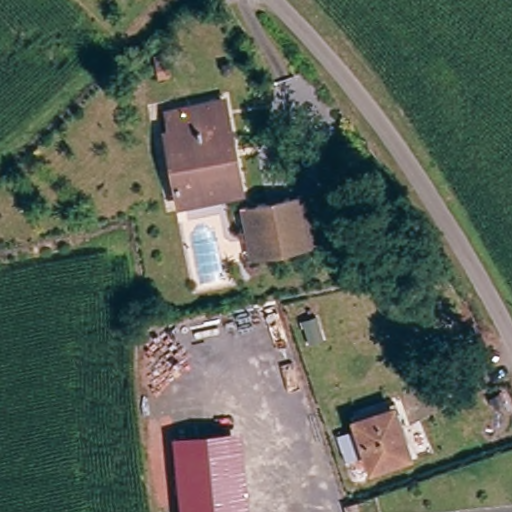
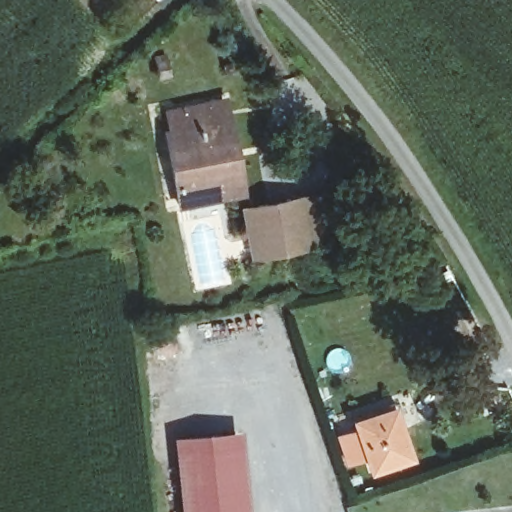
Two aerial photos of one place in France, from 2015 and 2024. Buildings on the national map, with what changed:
unchanged [(166,125),(174,122),(171,106),(223,94),(239,191),(179,206),(166,125)]
unchanged [(317,190),(326,238),(312,240),(250,250),(242,205),(305,193),(317,190)]
unchanged [(387,413),(402,453),(366,468),(351,426),(387,413)]
unchanged [(181,512),(171,438),(230,431),(241,512),(181,512)]

